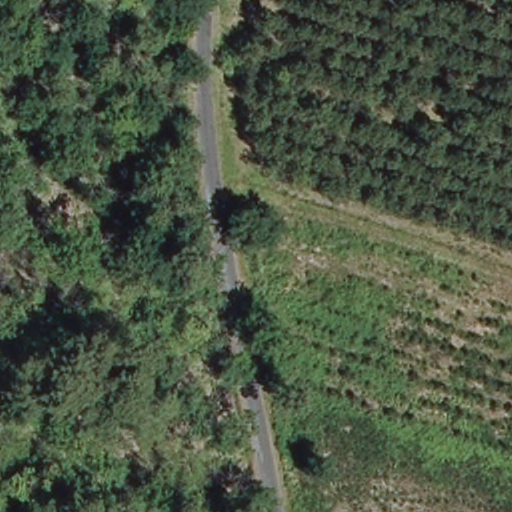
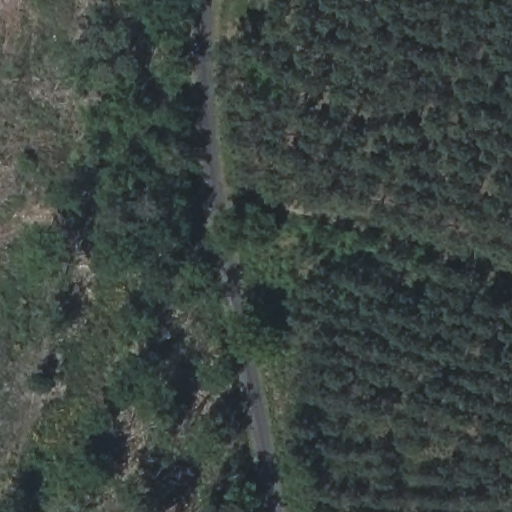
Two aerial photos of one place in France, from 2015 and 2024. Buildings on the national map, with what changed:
[]

